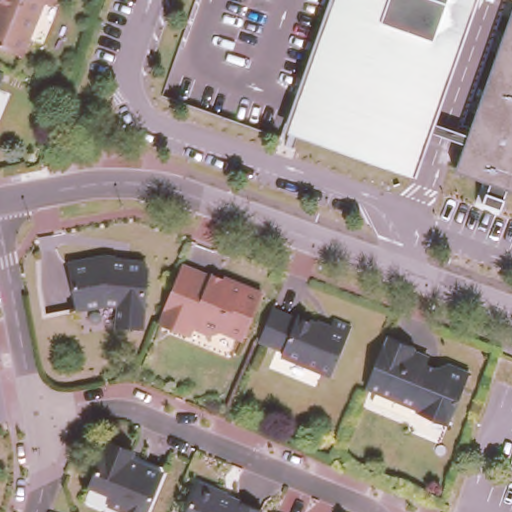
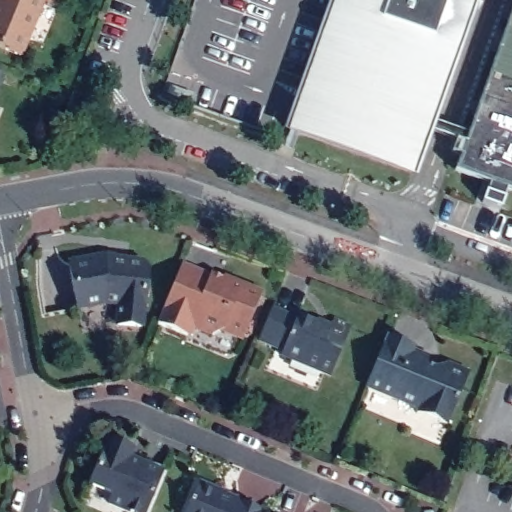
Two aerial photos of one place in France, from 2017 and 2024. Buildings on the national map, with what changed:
unchanged [(453,178),(464,150),(423,135),(413,164),(409,175),(286,131),(290,119),(334,0),(473,0),(427,125),(467,140),(512,19),(512,199),(453,178)]
unchanged [(502,0),(512,0),(512,4),(502,0)]
unchanged [(100,260),(102,259),(104,257),(107,257),(110,258),(111,259),(112,260),(113,262),(113,263),(113,265),(121,266),(127,261),(142,262),(147,268),(142,326),(117,325),(118,305),(105,303),(78,310),(70,264),(91,260),(92,264),(99,263),(100,260)]
unchanged [(209,272),(210,268),(222,273),(261,289),(243,332),(223,325),(214,326),(192,318),(187,329),(157,318),(181,261),(209,272)]
unchanged [(325,321),(327,321),(339,326),(342,318),(350,321),(330,371),(280,350),(282,345),(258,335),(272,303),(295,313),(297,310),(324,322),(325,321)]
unchanged [(413,358),(415,356),(417,355),(420,355),(422,355),(423,356),(425,358),(426,360),(426,362),(425,363),(437,368),(447,365),(468,375),(447,427),(417,415),(413,407),(365,386),(387,335),(415,347),(410,357),(413,358)]
unchanged [(123,457),(132,461),(142,462),(155,468),(136,512),(132,512),(103,500),(107,490),(84,480),(102,436),(127,446),(123,457)]
unchanged [(221,495),(257,510),(257,512),(180,512),(192,481),(220,493),(221,495)]

